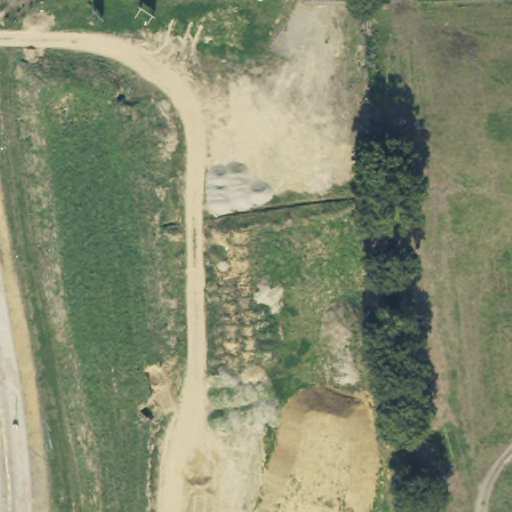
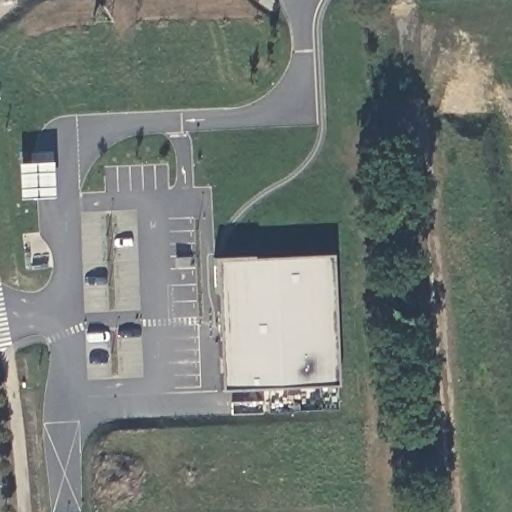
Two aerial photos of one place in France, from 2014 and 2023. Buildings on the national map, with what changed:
new [(337,384),(224,390),(217,261),(331,255),(337,384)]

